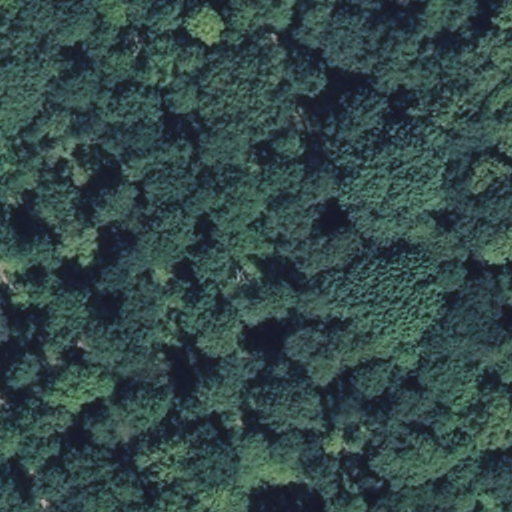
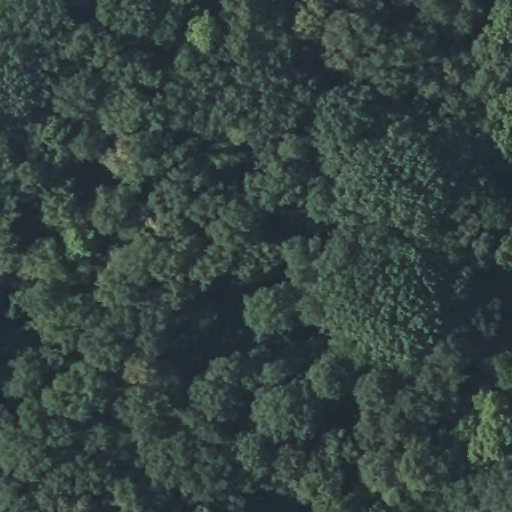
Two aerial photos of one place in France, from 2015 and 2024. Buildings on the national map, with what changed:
[]

